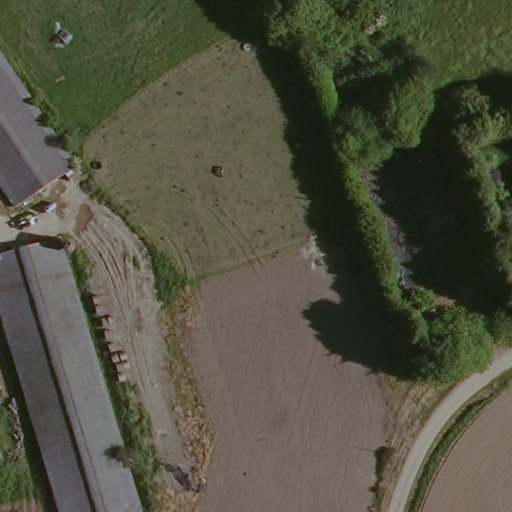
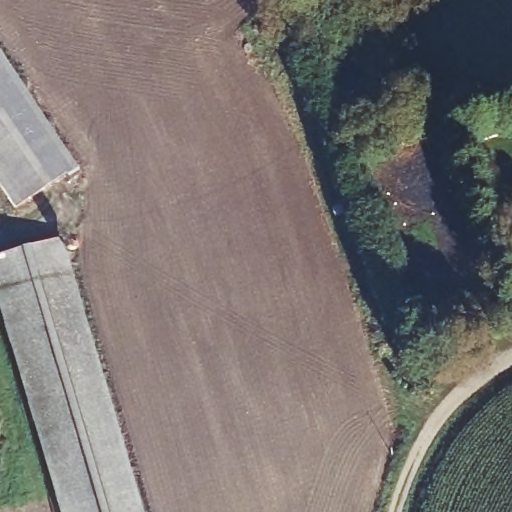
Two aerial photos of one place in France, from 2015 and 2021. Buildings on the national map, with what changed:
unchanged [(0,201),(0,66),(69,173),(8,213),(0,201)]
unchanged [(0,323),(0,263),(58,244),(138,512),(57,512),(0,323)]

